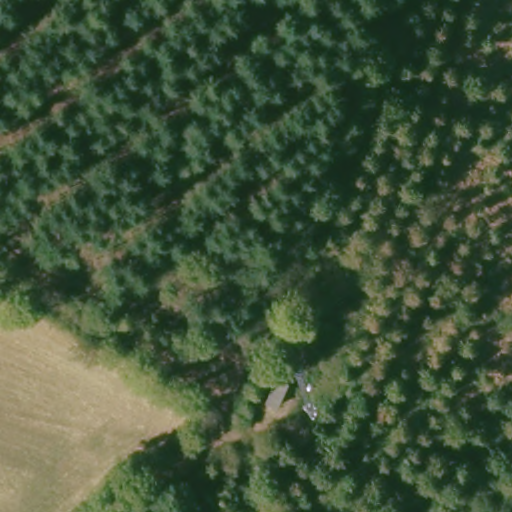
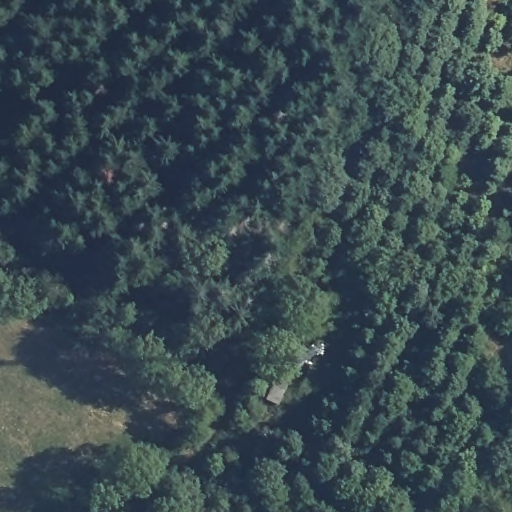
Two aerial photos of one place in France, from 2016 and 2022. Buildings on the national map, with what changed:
unchanged [(286,386),(275,406),(263,400),(274,380),(286,386)]

